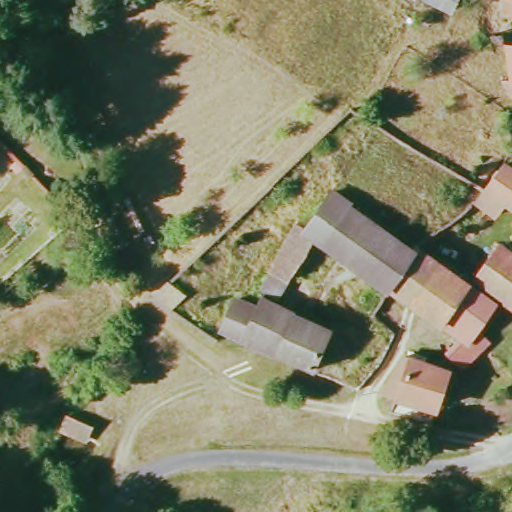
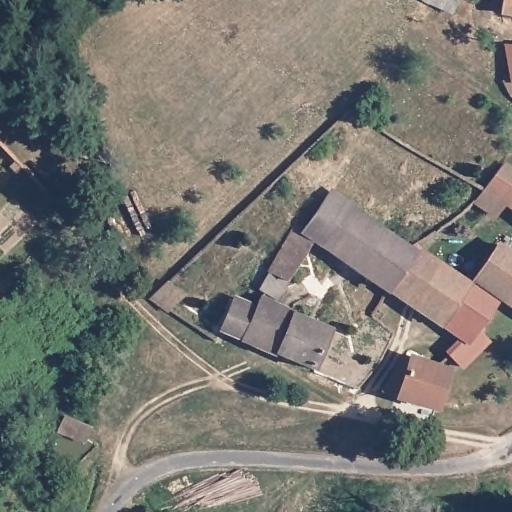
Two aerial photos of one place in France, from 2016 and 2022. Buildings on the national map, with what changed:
unchanged [(503,11),(505,0),(512,0),(512,13),(503,11)]
unchanged [(472,201),(485,187),(487,185),(506,165),(512,169),(512,207),(498,220),(472,201)]
unchanged [(264,291),(295,226),(303,228),(335,189),(357,201),(354,211),(419,258),(395,295),(318,240),(276,298),(267,293),(264,291)]
unchanged [(507,304),(477,282),(502,247),(512,254),(512,308),(507,304)]
unchanged [(419,258),(422,254),(502,310),(485,337),(493,343),(482,353),(465,369),(452,356),(472,333),(452,321),(445,330),(395,295),(419,258)]
unchanged [(158,301),(175,285),(195,300),(180,317),(158,301)]
unchanged [(333,335),(318,375),(244,342),(223,332),(238,302),(258,312),(263,301),(333,335)]
unchanged [(442,411),(403,401),(387,397),(408,359),(415,361),(452,372),(442,411)]

